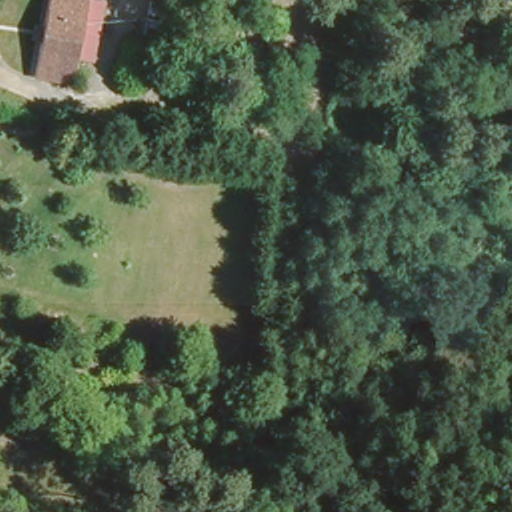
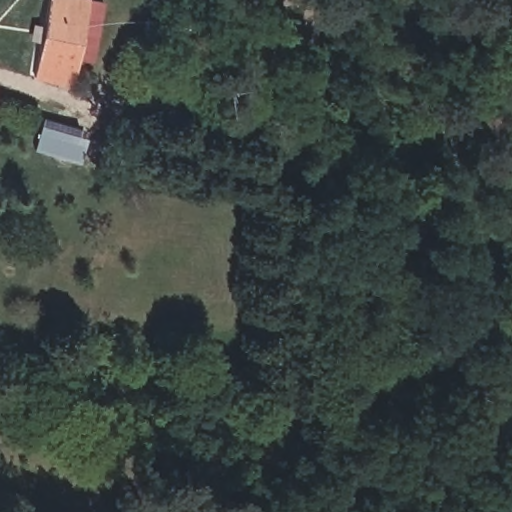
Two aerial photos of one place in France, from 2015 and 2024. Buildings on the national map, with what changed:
unchanged [(99,0),(89,52),(74,51),(35,46),(42,0),(99,0)]
new [(79,127),(77,134),(85,137),(78,161),(34,149),(43,116),(79,127)]

